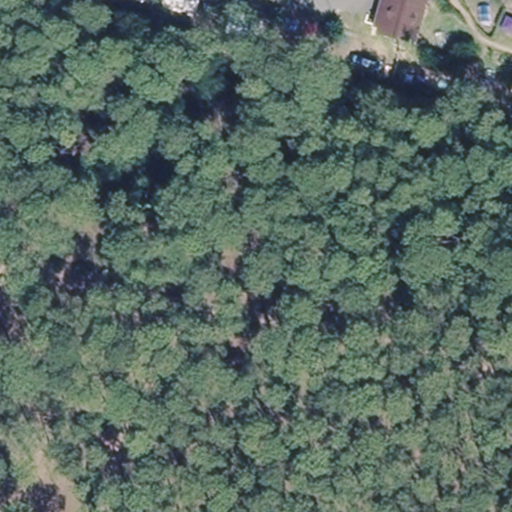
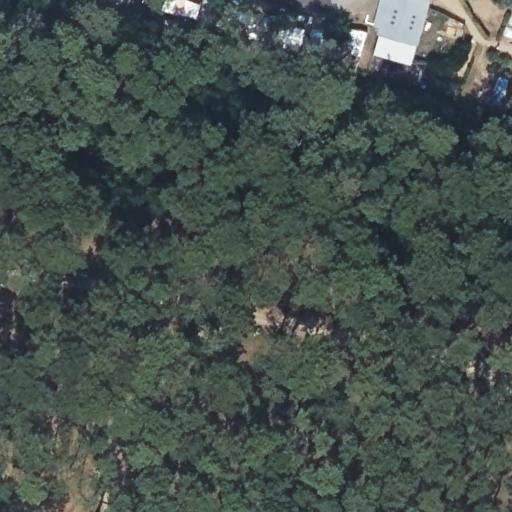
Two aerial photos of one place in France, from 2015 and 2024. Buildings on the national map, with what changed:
unchanged [(380,32),(389,0),(426,0),(426,3),(415,42),(380,32)]

